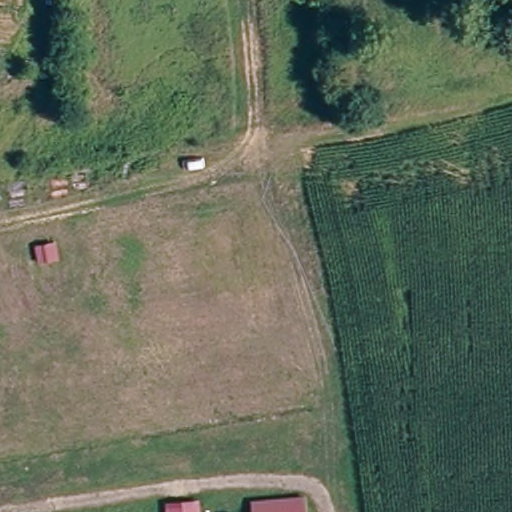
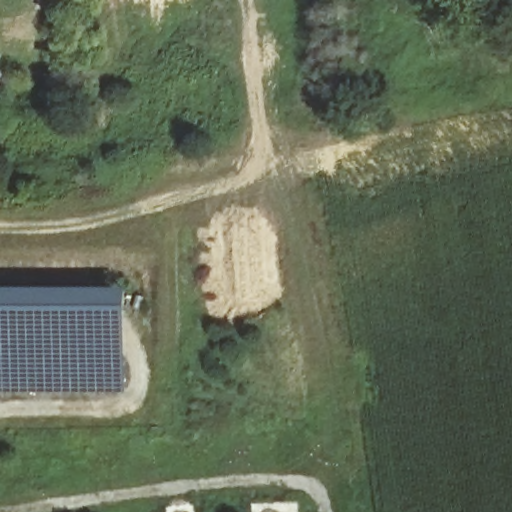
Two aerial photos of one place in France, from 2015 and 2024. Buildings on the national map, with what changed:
new [(125,391),(0,391),(0,288),(125,288),(125,391)]

